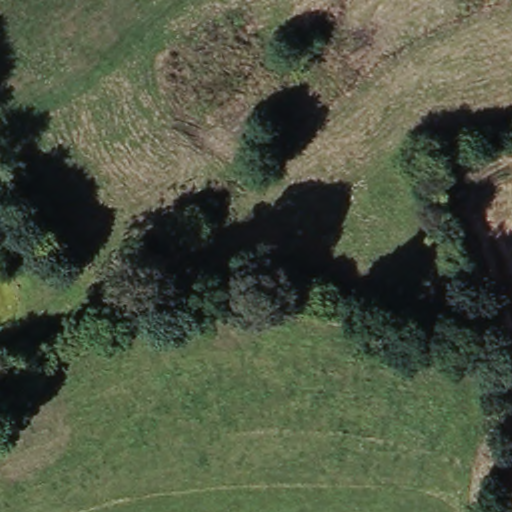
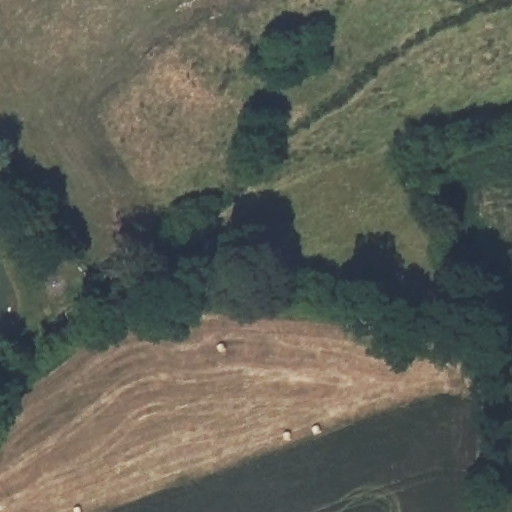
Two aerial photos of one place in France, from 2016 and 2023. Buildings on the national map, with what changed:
[]

